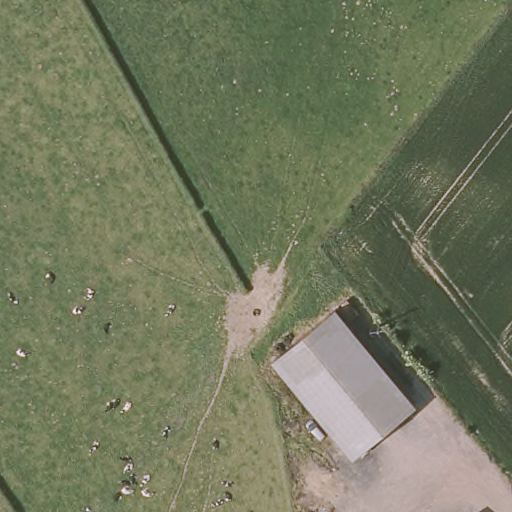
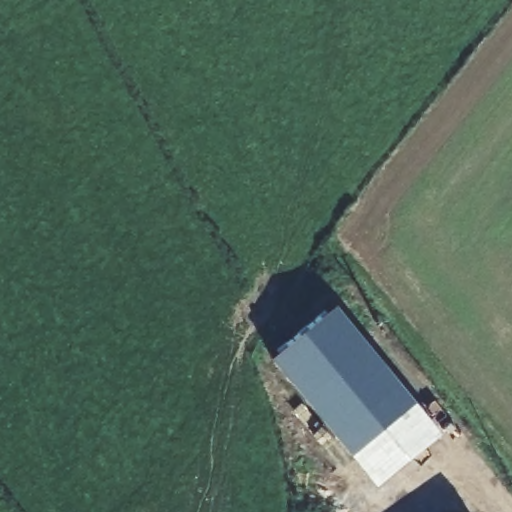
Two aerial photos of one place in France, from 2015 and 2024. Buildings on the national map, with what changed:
unchanged [(273,361),(336,308),(416,406),(352,458),(273,361)]
new [(416,406),(441,435),(376,488),(352,458),(416,406)]

